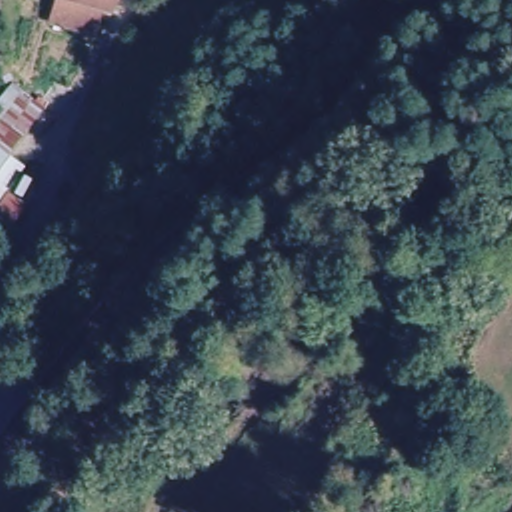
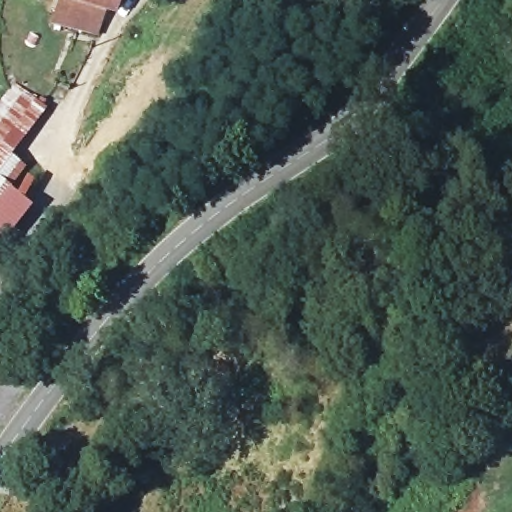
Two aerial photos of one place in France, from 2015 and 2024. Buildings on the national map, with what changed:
unchanged [(91,35),(46,24),(57,0),(65,0),(101,10),(91,35)]
unchanged [(107,12),(101,10),(65,0),(112,0),(107,12)]
unchanged [(22,163),(0,192),(0,99),(9,86),(45,104),(9,152),(22,163)]
unchanged [(0,230),(0,209),(11,191),(26,201),(5,233),(0,230)]

